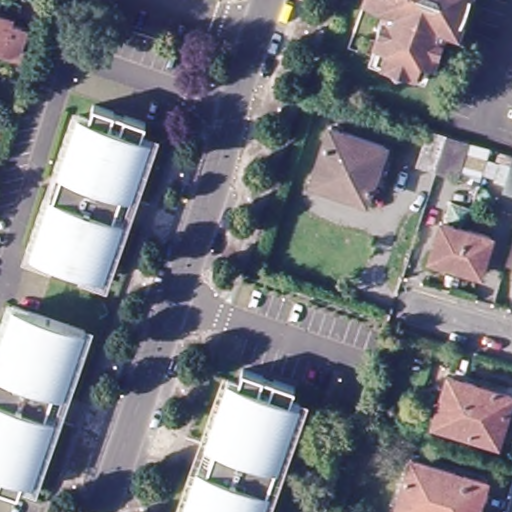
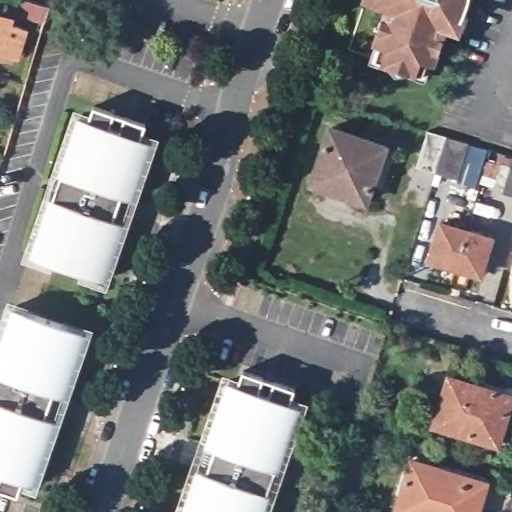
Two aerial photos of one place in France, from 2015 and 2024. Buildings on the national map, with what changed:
unchanged [(436,54),(431,53),(426,68),(394,57),(392,62),(382,59),(385,54),(380,52),(385,39),(378,37),(383,23),(387,11),(391,0),(390,0),(468,0),(463,9),(456,21),(448,19),(445,30),(441,42),(436,54)]
unchanged [(41,28),(13,20),(17,5),(45,14),(41,28)]
unchanged [(7,30),(20,34),(15,48),(18,50),(15,63),(0,59),(0,24),(8,26),(7,30)]
unchanged [(119,228),(99,287),(24,262),(44,201),(47,203),(55,181),(51,180),(72,120),(85,124),(90,111),(111,119),(110,124),(119,127),(121,122),(139,128),(135,141),(147,146),(127,205),(124,204),(116,227),(119,228)]
unchanged [(382,145),(363,201),(310,184),(328,129),(382,145)]
unchanged [(459,178),(435,171),(415,165),(426,129),(446,135),(471,143),(459,178)]
unchanged [(502,190),(504,186),(493,182),(498,162),(511,165),(512,161),(512,193),(502,190)]
unchanged [(493,238),(481,275),(430,260),(442,222),(493,238)]
unchanged [(57,390),(50,410),(59,413),(37,478),(27,475),(22,490),(0,483),(0,482),(2,477),(0,476),(0,342),(14,303),(90,329),(82,352),(67,393),(57,390)]
unchanged [(237,379),(248,383),(252,368),(270,374),(268,379),(281,384),(282,378),(302,385),(297,398),(308,401),(287,469),(281,467),(275,487),(278,489),(271,512),(190,512),(207,464),(215,467),(222,447),(214,443),(229,403),(237,379)]
unchanged [(512,400),(512,423),(504,449),(438,429),(453,383),(512,400)]
unchanged [(453,476),(455,471),(487,482),(484,492),(478,512),(395,512),(410,462),(453,476)]

